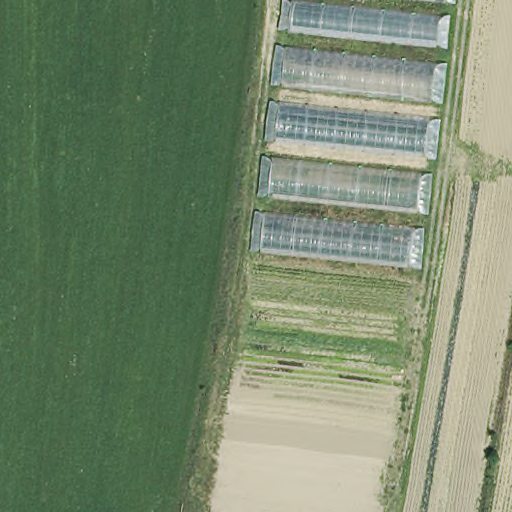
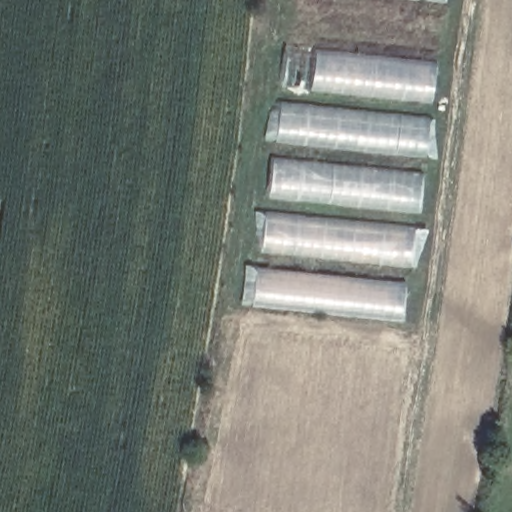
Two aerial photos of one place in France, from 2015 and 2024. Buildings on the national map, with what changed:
unchanged [(287,0),(292,0),(451,16),(449,46),(282,29),(287,0)]
unchanged [(457,0),(457,2),(439,0),(457,0)]
unchanged [(279,83),(284,49),(447,64),(443,102),(279,83)]
unchanged [(271,140),(277,102),(442,121),(437,159),(271,140)]
unchanged [(261,195),(266,156),(432,175),(429,213),(261,195)]
unchanged [(252,250),(257,211),(425,229),(423,268),(252,250)]
new [(417,282),(415,326),(241,306),(246,268),(417,282)]

